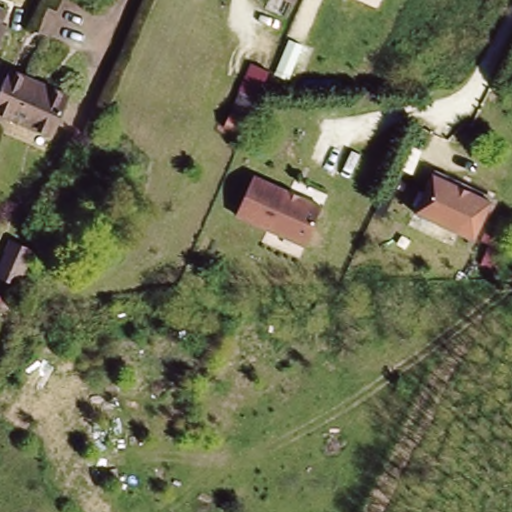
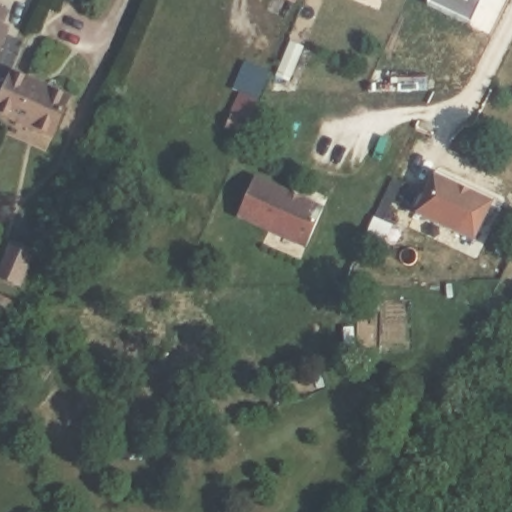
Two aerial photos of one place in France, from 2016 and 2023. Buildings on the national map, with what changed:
new [(429,4),(430,0),(485,0),(473,23),(429,4)]
unchanged [(9,10),(3,24),(9,26),(0,48),(0,7),(9,10)]
unchanged [(0,113),(0,93),(11,68),(34,78),(51,86),(70,94),(68,98),(52,135),(0,113)]
unchanged [(224,126),(240,91),(258,99),(242,134),(224,126)]
unchanged [(494,198),(475,240),(415,209),(433,172),(494,198)]
unchanged [(321,205),(303,248),(235,219),(252,177),(321,205)]
unchanged [(32,238),(18,270),(0,261),(0,259),(13,230),(32,238)]

